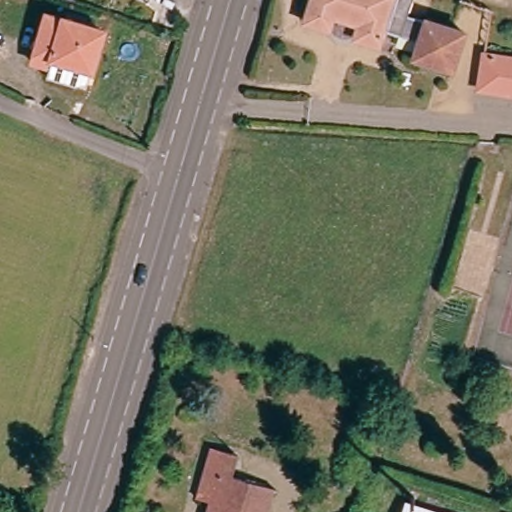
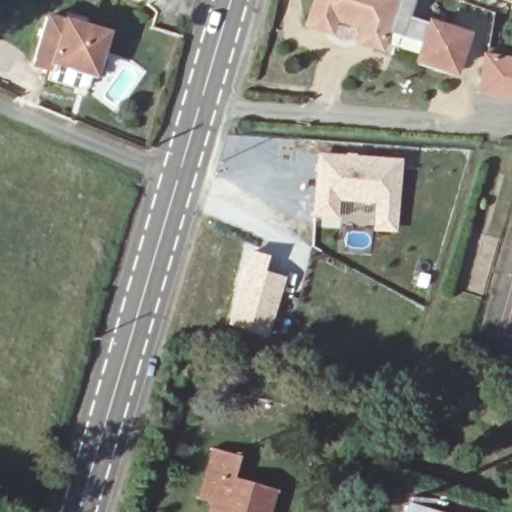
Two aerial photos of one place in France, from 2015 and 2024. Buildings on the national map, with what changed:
unchanged [(403,20),(460,36),(450,70),(413,60),(418,43),(382,31),(377,46),(354,40),(357,27),(330,19),(326,30),(305,24),(312,0),(408,0),(403,20)]
unchanged [(45,17),(102,34),(91,72),(43,59),(41,65),(32,63),(45,17)]
unchanged [(492,60),(512,63),(512,97),(487,94),(492,60)]
new [(400,160),(397,205),(339,200),(337,218),(311,215),(317,154),(400,160)]
new [(266,256),(261,271),(281,277),(266,331),(232,321),(250,255),(266,256)]
unchanged [(226,478),(266,490),(259,512),(204,512),(207,500),(195,497),(209,450),(231,457),(226,478)]
unchanged [(402,512),(404,505),(427,512),(402,512)]

